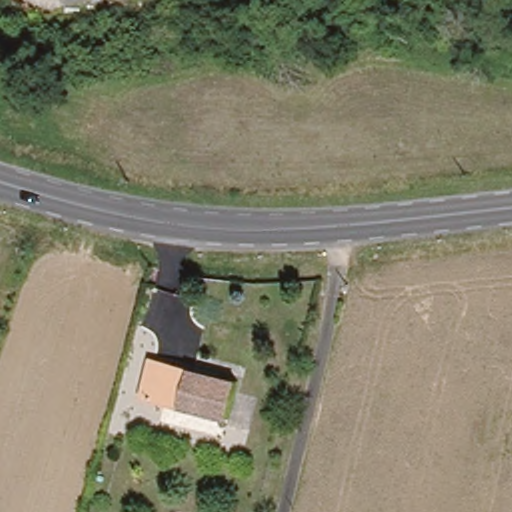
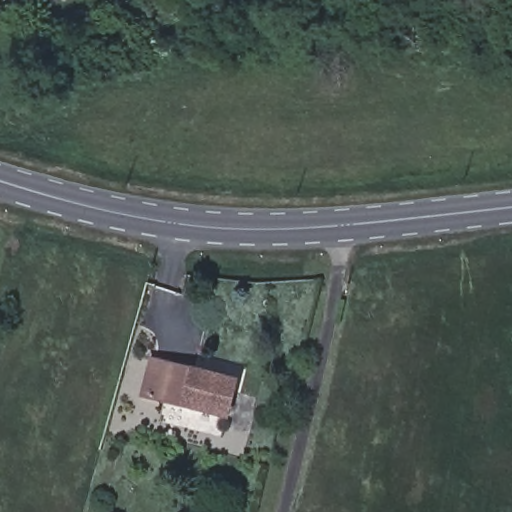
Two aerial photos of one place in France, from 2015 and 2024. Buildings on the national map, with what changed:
unchanged [(229,417),(147,396),(155,363),(237,383),(229,417)]

